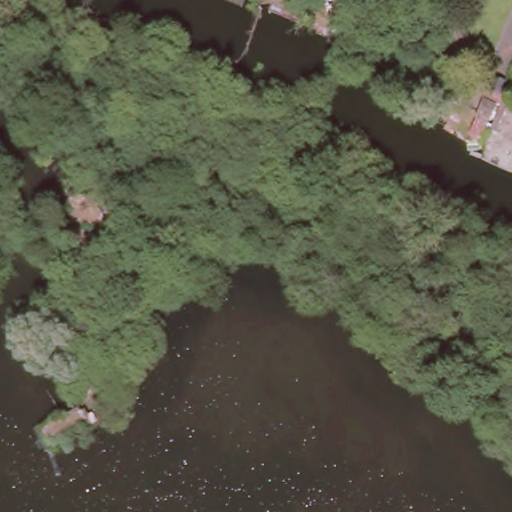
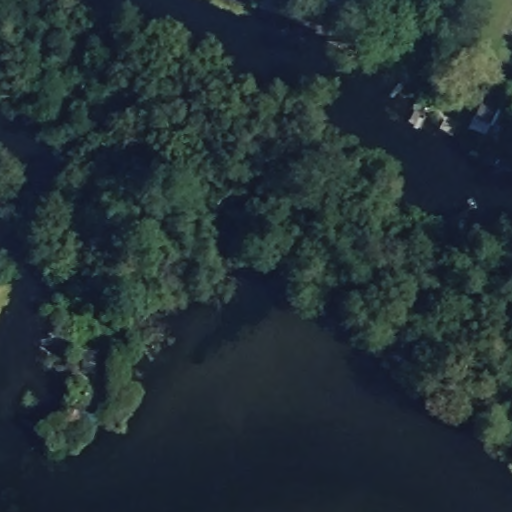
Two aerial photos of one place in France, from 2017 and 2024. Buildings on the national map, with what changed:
unchanged [(479,96),(494,101),(487,120),(472,115),(479,96)]
unchanged [(499,100),(506,102),(496,130),(489,127),(499,100)]

